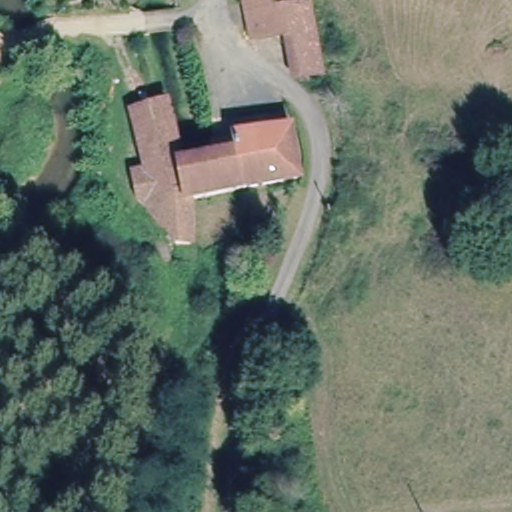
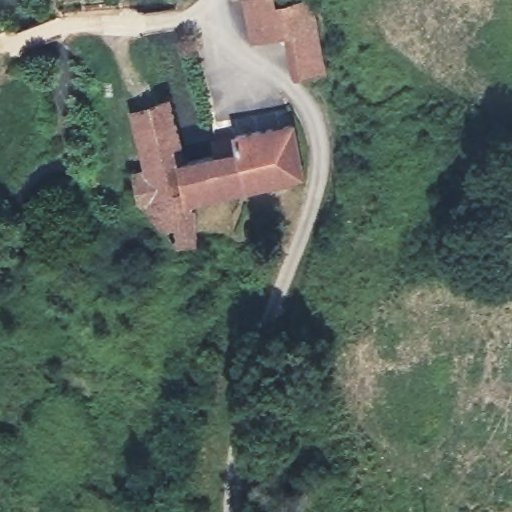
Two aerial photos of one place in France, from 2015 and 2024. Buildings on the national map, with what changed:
unchanged [(313,26),(287,30),(252,35),(249,0),(308,0),(313,26)]
unchanged [(287,30),(313,26),(323,69),(296,72),(287,30)]
unchanged [(168,102),(188,155),(152,169),(129,115),(168,102)]
unchanged [(192,203),(189,203),(182,206),(180,192),(176,165),(183,164),(197,160),(218,154),(236,152),(233,136),(289,131),(298,180),(233,196),(206,201),(192,203)]
unchanged [(180,192),(182,206),(189,203),(192,203),(190,244),(177,244),(148,199),(180,192)]

